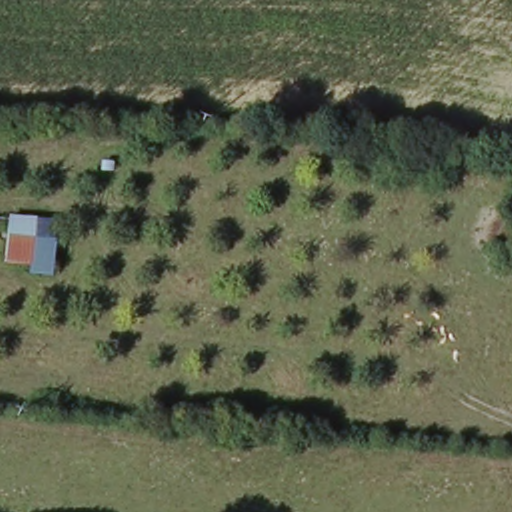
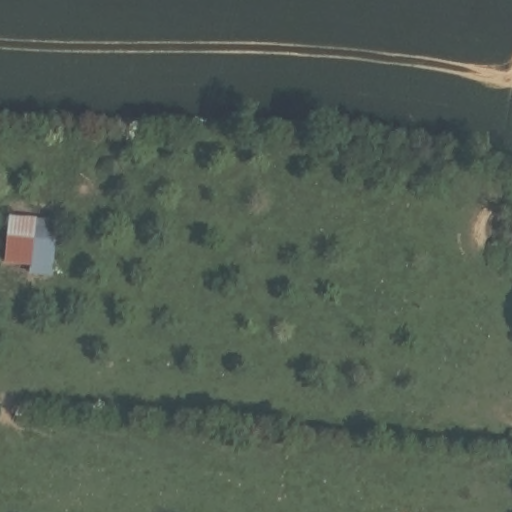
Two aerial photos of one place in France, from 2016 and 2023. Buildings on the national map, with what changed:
unchanged [(11,218),(60,222),(57,268),(34,267),(7,265),(9,243),(11,218)]

